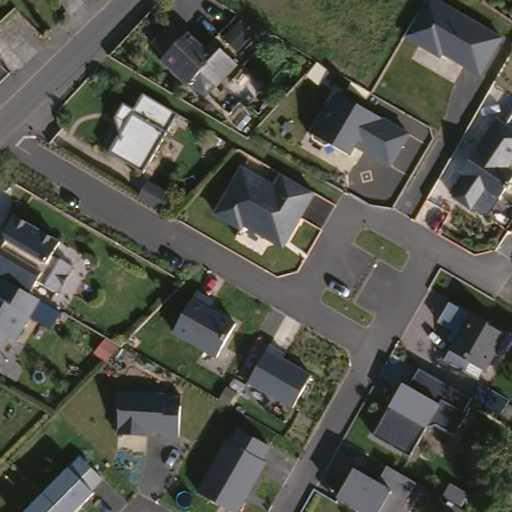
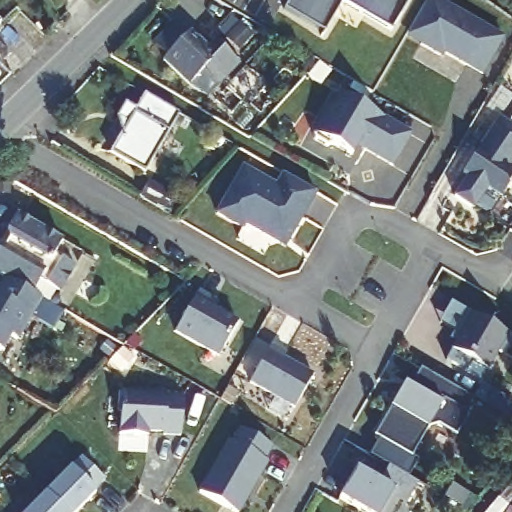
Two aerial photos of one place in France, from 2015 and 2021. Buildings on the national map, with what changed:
new [(290,0),(409,0),(391,31),(342,4),(323,31),(285,9),(290,0)]
unchanged [(504,37),(482,76),(444,55),(441,59),(405,39),(427,0),(440,0),(504,37)]
unchanged [(10,22),(0,31),(0,11),(10,22)]
unchanged [(196,81),(168,56),(172,52),(158,39),(179,17),(192,29),(194,27),(217,48),(225,40),(247,61),(226,82),(212,96),(196,81)]
unchanged [(146,172),(111,151),(128,122),(118,117),(126,102),(137,108),(145,94),(163,105),(179,115),(146,172)]
unchanged [(329,102),(332,106),(339,96),(415,132),(395,169),(361,149),(353,157),(312,132),(329,102)]
unchanged [(512,128),(507,126),(512,119),(512,128)]
unchanged [(512,128),(512,164),(511,167),(512,168),(512,183),(502,199),(487,191),(474,210),(449,194),(498,120),(512,128)]
unchanged [(242,228),(217,212),(244,170),(273,186),(278,175),(317,196),(284,248),(244,226),(242,228)]
unchanged [(145,179),(169,192),(160,208),(136,194),(145,179)]
unchanged [(11,230),(21,214),(66,241),(59,254),(79,266),(64,292),(43,280),(36,292),(24,286),(11,278),(9,277),(7,275),(0,271),(0,248),(3,244),(11,230)]
unchanged [(0,347),(0,292),(9,277),(11,278),(24,286),(36,292),(45,298),(21,338),(14,335),(5,350),(0,347)]
unchanged [(173,333),(202,291),(215,298),(210,307),(238,322),(217,356),(173,333)]
unchanged [(512,337),(512,342),(504,356),(498,352),(486,370),(471,362),(466,370),(444,361),(470,314),(512,337)]
unchanged [(274,346),(289,352),(285,361),(311,372),(291,406),(251,383),(274,346)]
unchanged [(403,385),(410,390),(420,371),(472,400),(456,432),(433,421),(412,457),(374,434),(403,385)]
unchanged [(122,392),(183,395),(180,438),(162,437),(162,433),(147,432),(147,436),(119,433),(122,392)]
unchanged [(229,442),(237,429),(271,446),(262,459),(270,462),(242,512),(234,512),(197,492),(226,438),(229,442)]
unchanged [(81,458),(106,478),(92,491),(97,496),(80,512),(22,512),(69,468),(81,458)]
unchanged [(378,481),(387,466),(419,481),(400,512),(367,512),(340,498),(356,469),(378,481)]

